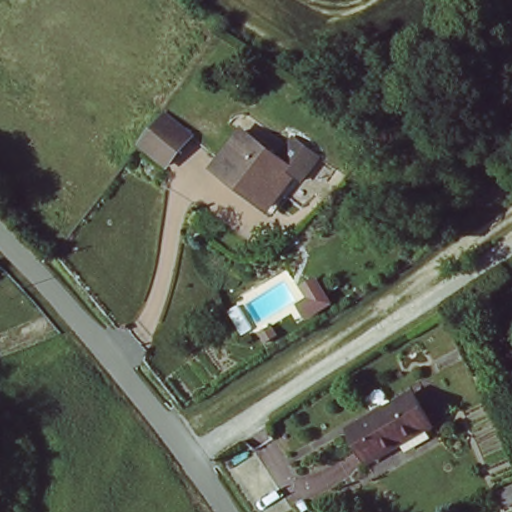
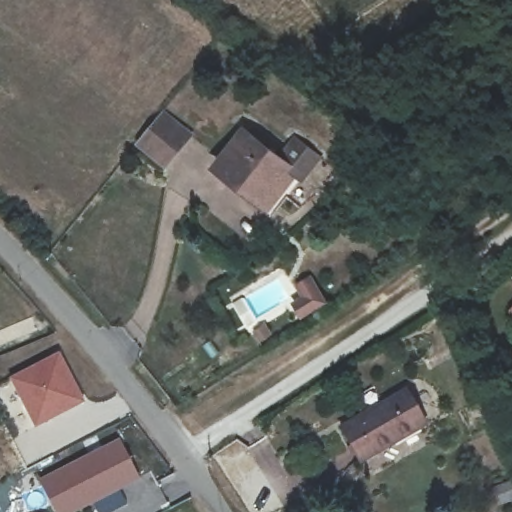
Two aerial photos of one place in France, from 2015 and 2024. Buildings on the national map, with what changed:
unchanged [(186,137),(165,167),(136,146),(158,116),(186,137)]
unchanged [(245,128),(296,166),(268,204),(216,167),(245,128)]
unchanged [(511,303),(512,303),(512,305),(511,303)]
new [(59,353),(83,402),(35,428),(10,378),(59,353)]
unchanged [(401,387),(422,426),(359,461),(338,424),(401,387)]
new [(141,481),(79,512),(55,512),(40,480),(119,440),(141,481)]
unchanged [(489,489),(511,479),(512,482),(512,498),(495,505),(489,489)]

